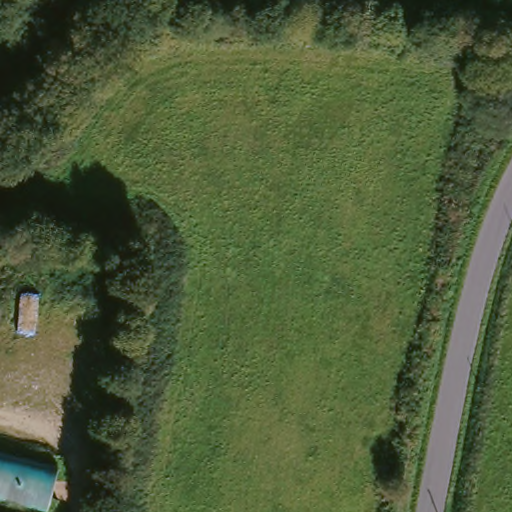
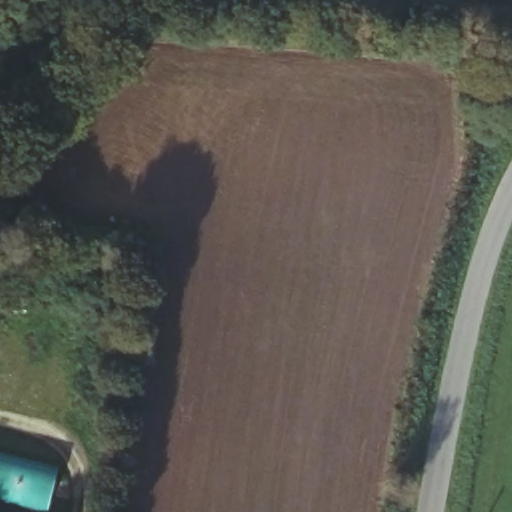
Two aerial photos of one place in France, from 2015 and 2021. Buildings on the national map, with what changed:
unchanged [(41,512),(27,512),(0,505),(0,458),(51,471),(41,512)]

